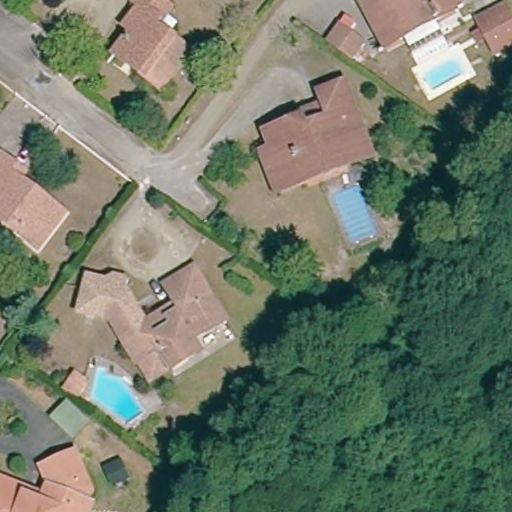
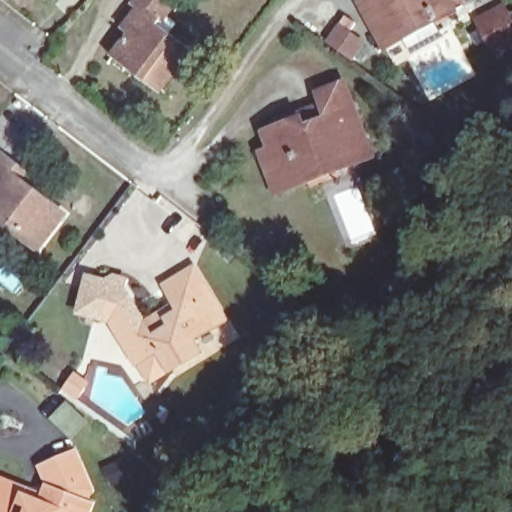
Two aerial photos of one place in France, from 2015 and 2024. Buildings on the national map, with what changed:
unchanged [(190,54),(162,90),(147,79),(151,73),(122,50),(134,34),(128,29),(135,21),(146,6),(140,1),(141,0),(165,0),(166,1),(174,8),(159,29),(190,54)]
unchanged [(401,32),(383,42),(360,0),(460,0),(432,15),(440,30),(409,47),(401,32)]
unchanged [(488,53),(473,26),(469,19),(496,4),(500,11),(512,34),(512,40),(488,53)]
unchanged [(328,39),(339,24),(363,40),(351,57),(328,39)]
unchanged [(278,196),(273,184),(264,155),(274,151),(267,136),(282,130),(279,123),(325,105),(322,96),(345,87),(369,151),(372,159),(278,196)]
unchanged [(25,178),(20,186),(63,219),(37,255),(19,241),(0,226),(0,163),(1,160),(25,178)]
unchanged [(165,309),(177,302),(165,283),(181,274),(193,266),(208,291),(224,317),(192,337),(199,347),(152,375),(144,362),(139,365),(110,317),(79,309),(88,275),(104,280),(113,273),(124,276),(121,284),(144,321),(165,309)]
unchanged [(77,370),(87,377),(88,385),(81,395),(66,383),(77,370)]
unchanged [(21,493),(36,500),(44,481),(38,464),(70,450),(87,487),(83,497),(88,500),(83,512),(0,512),(0,477),(18,485),(21,493)]
unchanged [(123,457),(132,475),(118,482),(109,465),(123,457)]

